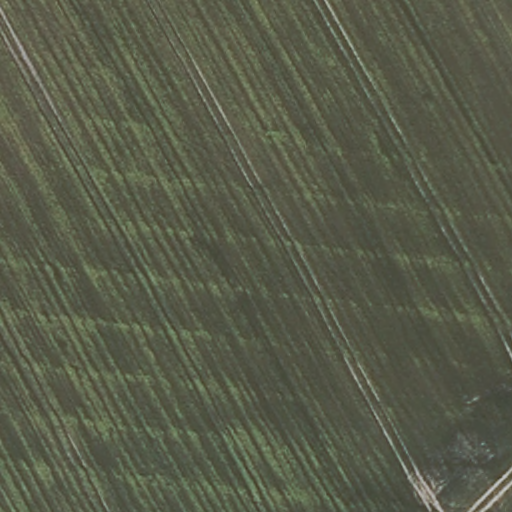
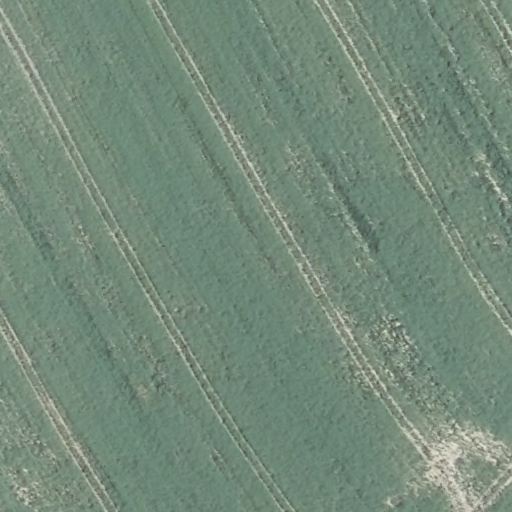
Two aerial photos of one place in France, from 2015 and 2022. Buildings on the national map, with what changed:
[]

